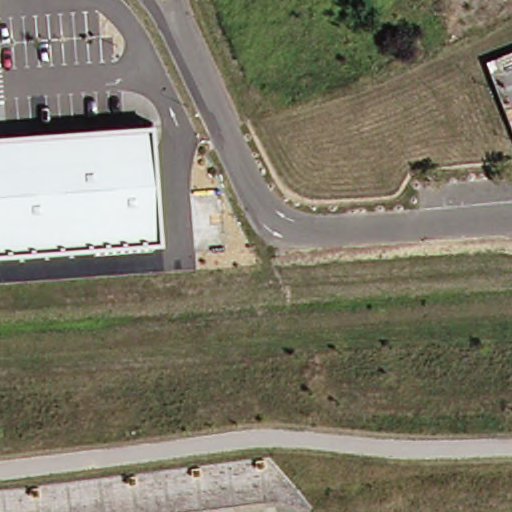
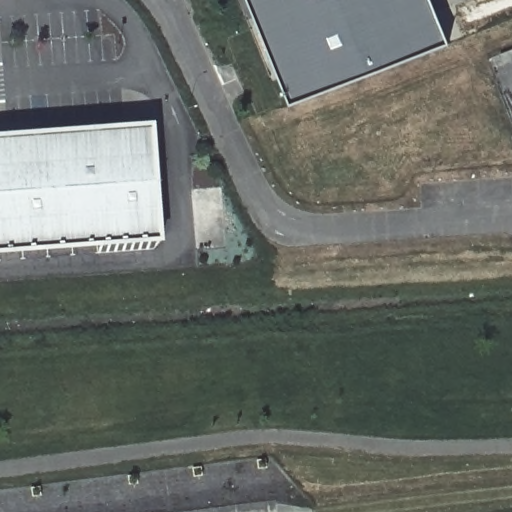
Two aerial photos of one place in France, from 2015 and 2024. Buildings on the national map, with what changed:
new [(289,106),(247,0),(431,0),(449,45),(289,106)]
unchanged [(165,237),(0,249),(0,135),(157,124),(165,237)]

